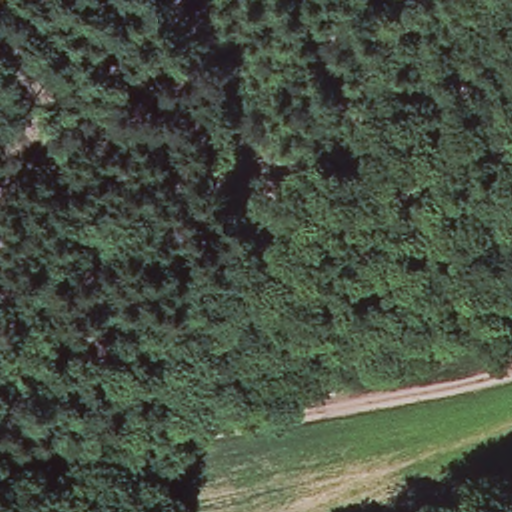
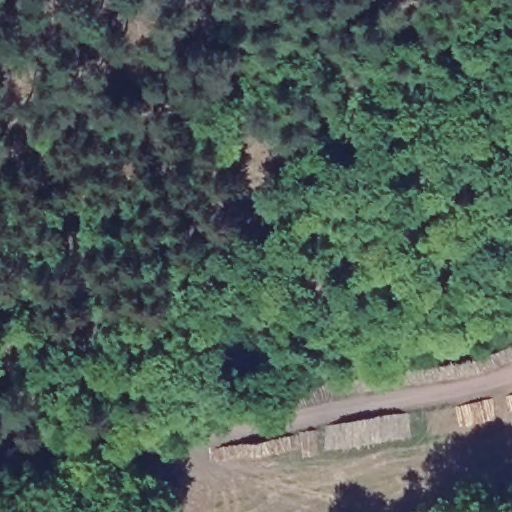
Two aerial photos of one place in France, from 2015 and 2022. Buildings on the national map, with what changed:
unchanged [(407,376),(403,353),(456,345),(462,370),(407,376)]

